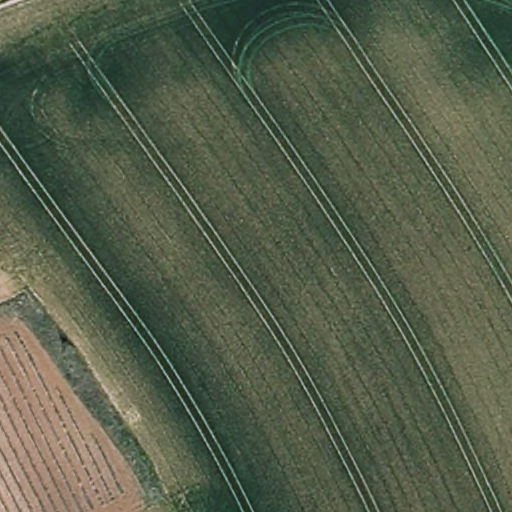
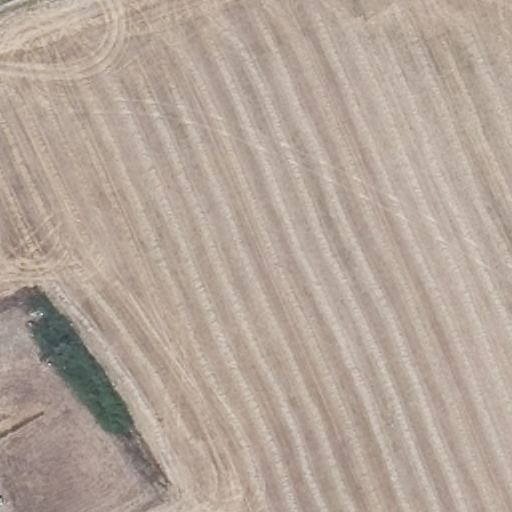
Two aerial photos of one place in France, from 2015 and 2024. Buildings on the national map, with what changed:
[]

